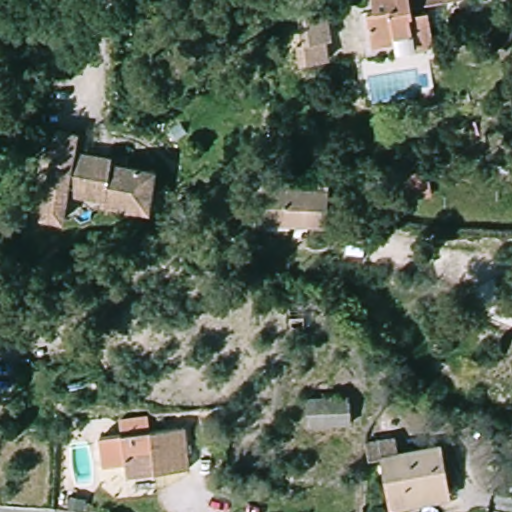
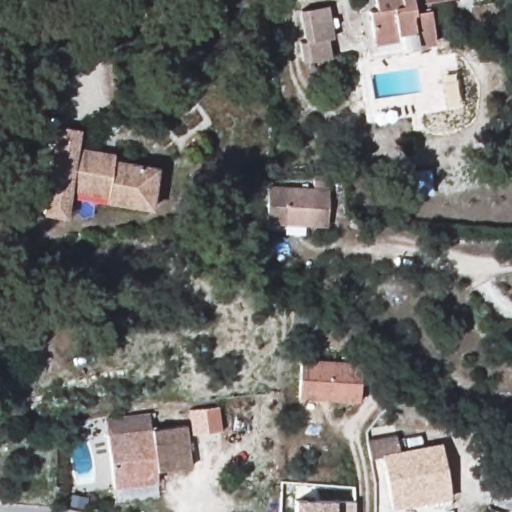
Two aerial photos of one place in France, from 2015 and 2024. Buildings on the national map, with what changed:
unchanged [(381,32),(362,34),(359,6),(366,6),(366,0),(421,0),(416,1),(417,11),(437,9),(441,42),(407,46),(384,49),(381,32)]
unchanged [(302,62),(299,42),(306,42),(302,11),(329,7),(331,40),(326,41),(326,59),(302,62)]
unchanged [(67,188),(63,216),(41,212),(55,127),(76,129),(74,147),(113,153),(111,159),(99,193),(67,188)]
unchanged [(102,199),(103,194),(99,193),(111,159),(154,167),(150,193),(149,207),(102,199)]
unchanged [(268,229),(269,192),(328,194),(327,231),(268,229)]
new [(302,366),(362,368),(361,405),(301,403),(302,366)]
demolished [(304,426),(303,393),(344,392),(347,424),(304,426)]
unchanged [(126,469),(126,459),(102,460),(103,430),(187,426),(188,468),(126,469)]
unchanged [(364,460),(362,439),(377,437),(379,458),(364,460)]
unchanged [(391,510),(381,458),(441,448),(451,501),(391,510)]
new [(335,499),(354,499),(353,512),(294,512),(294,498),(335,499)]

